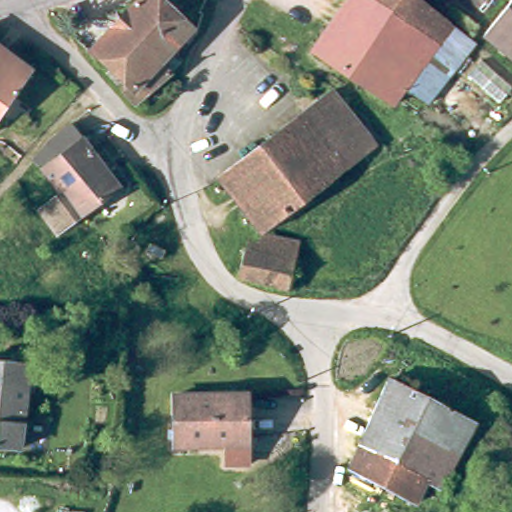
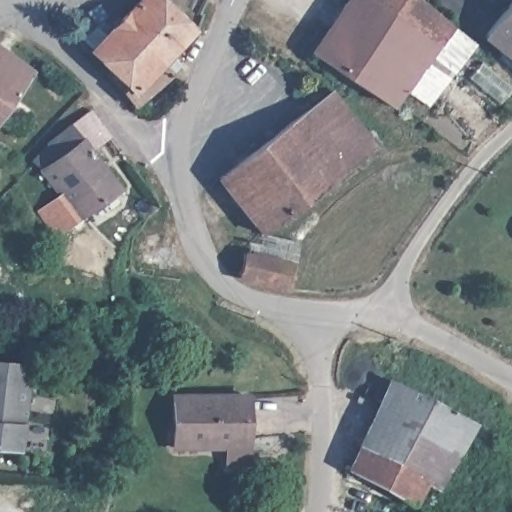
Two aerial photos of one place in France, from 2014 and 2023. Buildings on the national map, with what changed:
unchanged [(167,0),(198,28),(175,54),(185,62),(176,75),(140,104),(129,90),(134,85),(97,51),(143,0),(167,0)]
unchanged [(435,107),(410,95),(402,105),(398,110),(369,91),(330,66),(321,60),(318,59),(358,0),(417,0),(481,49),(435,107)]
unchanged [(490,40),(512,13),(512,57),(490,40)]
unchanged [(0,131),(0,51),(37,79),(0,131)]
unchanged [(382,147),(270,233),(225,176),(338,90),(382,147)]
unchanged [(53,145),(77,125),(112,172),(115,169),(120,176),(117,179),(125,191),(62,236),(44,210),(65,195),(40,161),(53,145)]
unchanged [(245,277),(246,275),(251,250),(301,263),(295,286),(295,289),(245,277)]
unchanged [(25,455),(0,452),(0,365),(34,369),(25,455)]
unchanged [(480,428),(445,492),(434,485),(420,510),(355,475),(396,384),(480,428)]
unchanged [(175,440),(175,395),(249,395),(249,446),(228,446),(175,447),(175,440)]

